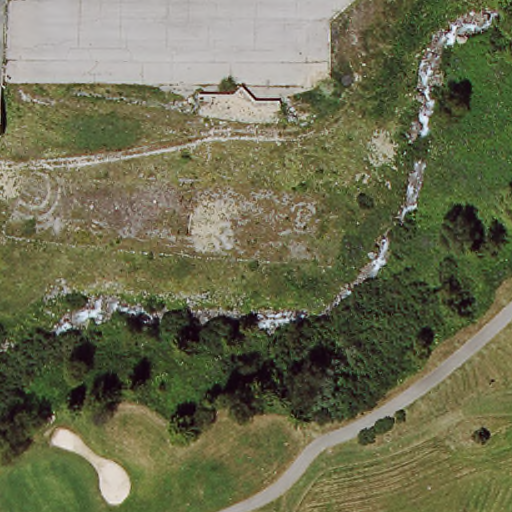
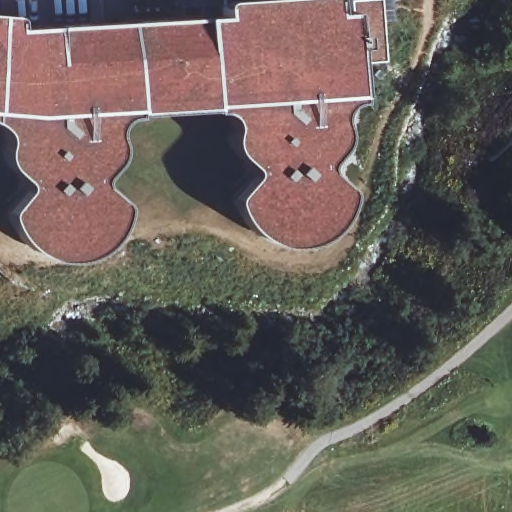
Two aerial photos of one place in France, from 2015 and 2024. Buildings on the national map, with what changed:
new [(15,28),(200,17),(220,16),(220,2),(219,0),(334,0),(334,12),(352,11),(352,2),(376,0),(383,0),(387,59),(356,60),(359,102),(347,106),(342,116),(341,126),(342,138),(336,152),(325,165),(325,172),(339,184),(345,193),(343,206),(332,225),(314,238),(292,245),(269,244),(246,227),(232,206),(232,195),(239,187),(249,177),(250,170),(240,160),(230,149),(227,135),(227,122),(223,112),(209,105),(135,110),(130,114),(120,119),(114,127),(115,142),(112,160),(102,174),(97,178),(99,185),(117,199),(120,209),(110,231),(97,245),(80,256),(60,259),(42,257),(25,245),(12,232),(4,213),(7,206),(20,191),(23,182),(12,171),(5,162),(1,154),(2,144),(2,134),(0,131),(0,17),(15,18),(15,28)]
demolished [(0,135),(0,120),(5,120),(5,135),(0,135)]

